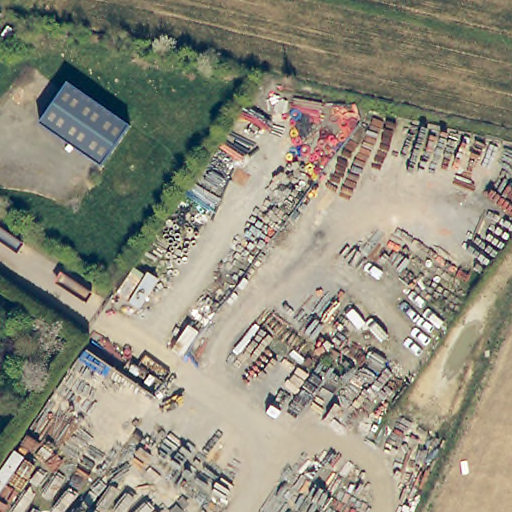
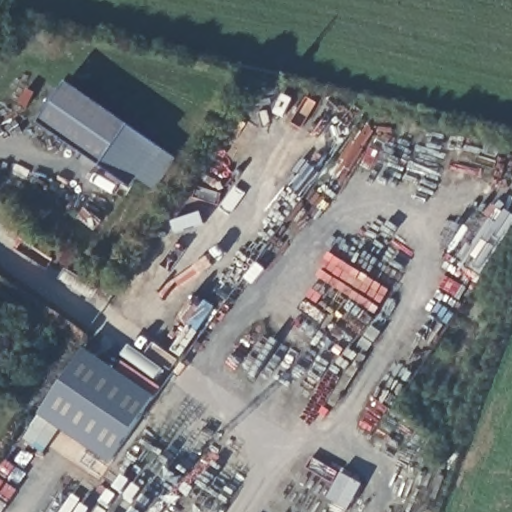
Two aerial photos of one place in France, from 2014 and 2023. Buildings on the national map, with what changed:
unchanged [(102,167),(40,125),(67,84),(130,127),(102,167)]
new [(110,462),(39,415),(86,348),(156,396),(110,462)]

